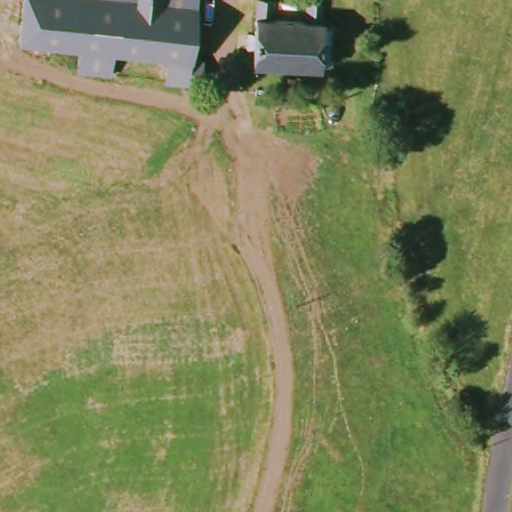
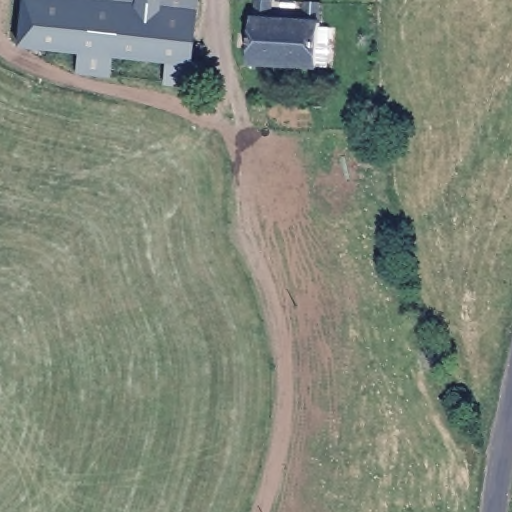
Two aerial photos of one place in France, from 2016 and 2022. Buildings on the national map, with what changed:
unchanged [(115,54),(114,80),(78,74),(80,50),(22,40),(28,0),(202,0),(195,54),(212,61),(207,89),(168,84),(169,64),(115,54)]
unchanged [(260,21),(260,8),(324,1),(327,24),(336,24),(337,40),(327,40),(329,65),(262,71),(260,21)]

